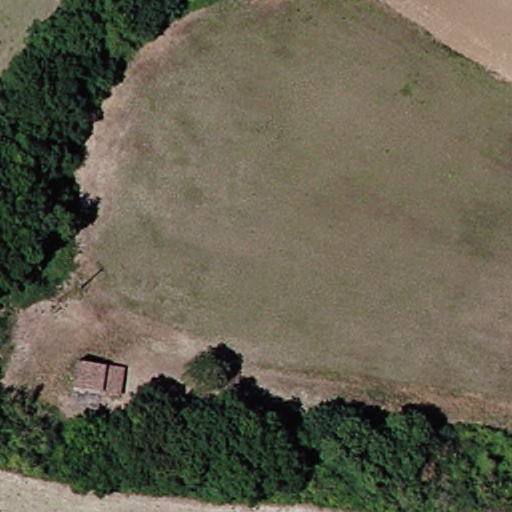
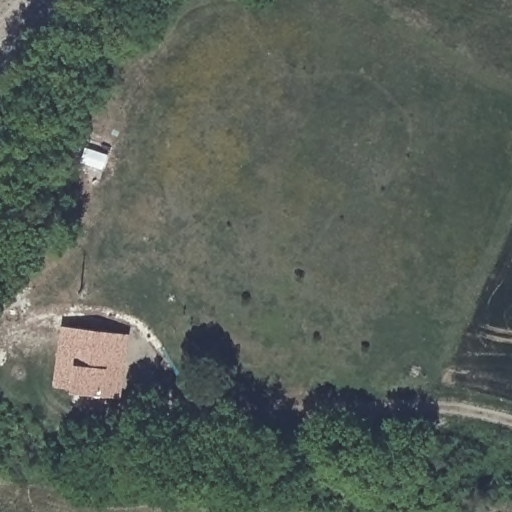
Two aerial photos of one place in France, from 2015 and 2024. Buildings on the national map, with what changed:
new [(53,383),(61,326),(126,335),(119,392),(53,383)]
demolished [(80,392),(84,366),(130,372),(124,400),(80,392)]

